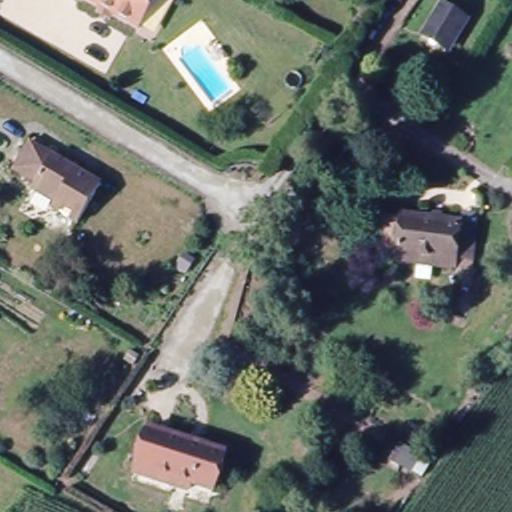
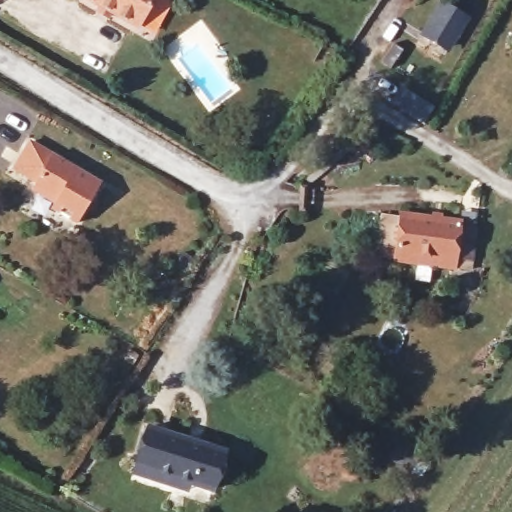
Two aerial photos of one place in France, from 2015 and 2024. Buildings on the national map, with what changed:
unchanged [(95,0),(145,0),(134,21),(109,7),(103,16),(90,7),(95,0)]
unchanged [(430,21),(443,0),(447,0),(471,15),(457,39),(452,49),(424,32),(430,21)]
unchanged [(65,201),(39,187),(42,181),(21,170),(35,145),(108,185),(87,222),(74,215),(61,209),(65,201)]
unchanged [(456,229),(471,230),(469,261),(452,258),(450,266),(391,260),(397,214),(456,221),(456,229)]
unchanged [(179,488),(145,478),(154,433),(232,450),(224,485),(207,480),(203,495),(179,488)]

